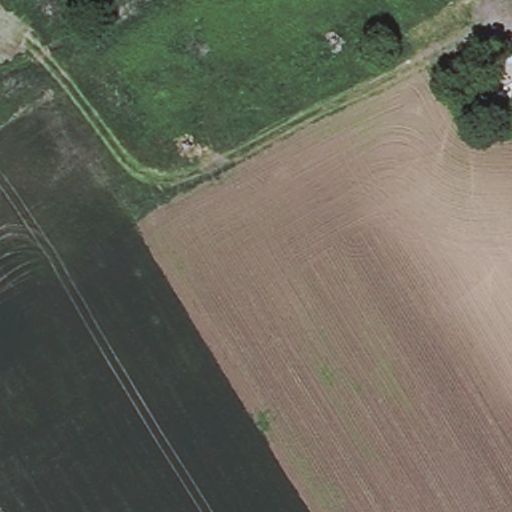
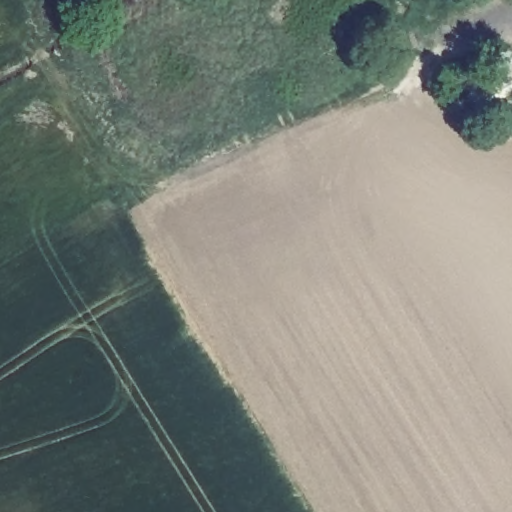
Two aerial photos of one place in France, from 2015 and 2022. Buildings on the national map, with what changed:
unchanged [(506,108),(487,77),(512,64),(512,105),(506,108)]

